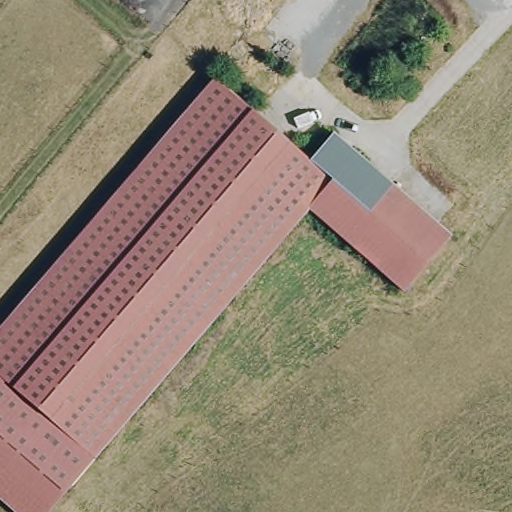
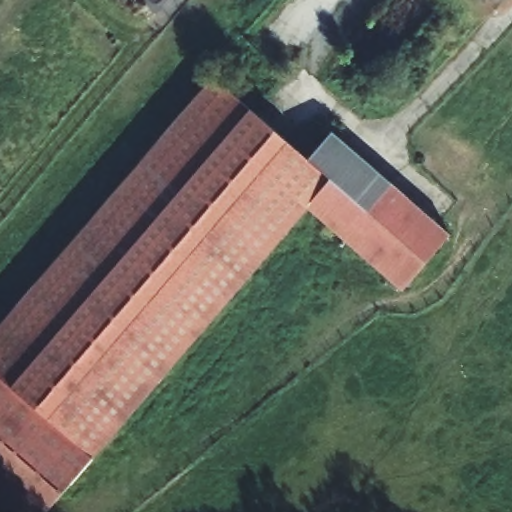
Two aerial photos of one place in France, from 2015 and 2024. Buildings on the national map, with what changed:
unchanged [(90,229),(226,82),(296,147),(319,168),(344,142),(457,249),(408,302),(316,216),(39,512),(14,512),(0,499),(0,325),(90,229)]

